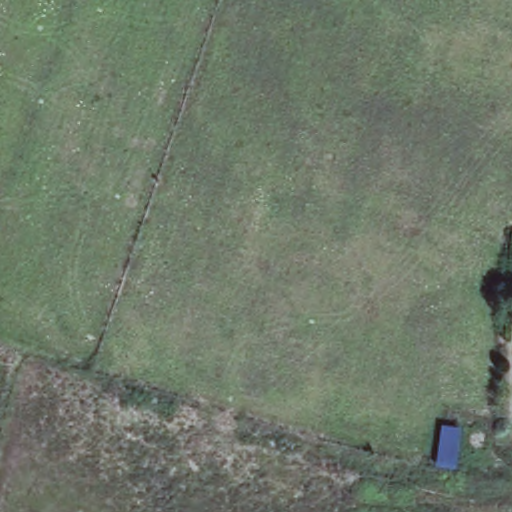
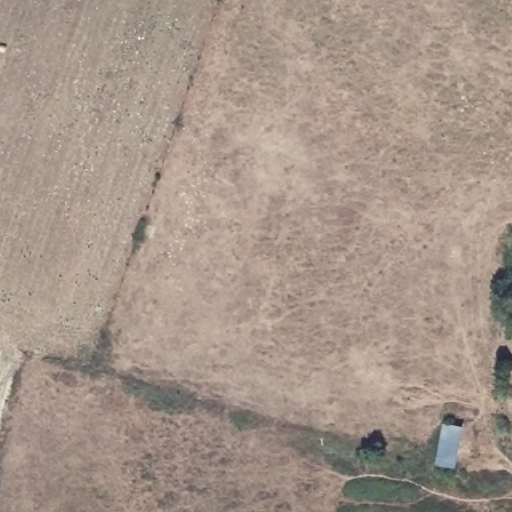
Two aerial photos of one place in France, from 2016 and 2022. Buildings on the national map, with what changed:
[]

